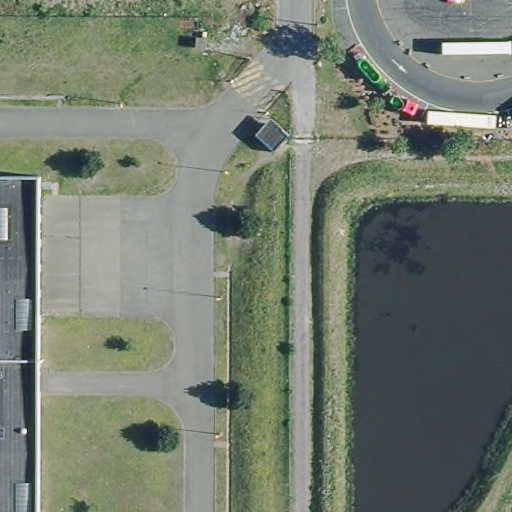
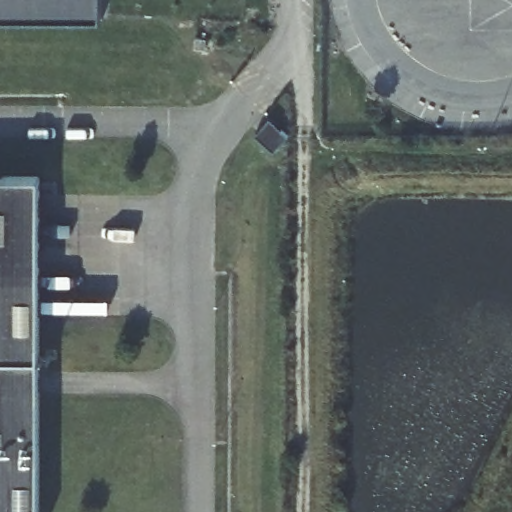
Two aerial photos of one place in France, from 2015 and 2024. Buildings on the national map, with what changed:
new [(101,15),(0,15),(0,0),(101,0),(101,15)]
new [(202,49),(192,47),(194,37),(204,39),(202,49)]
unchanged [(272,149),(251,131),(268,114),(289,133),(272,149)]
unchanged [(37,512),(0,512),(0,176),(39,176),(37,512)]

